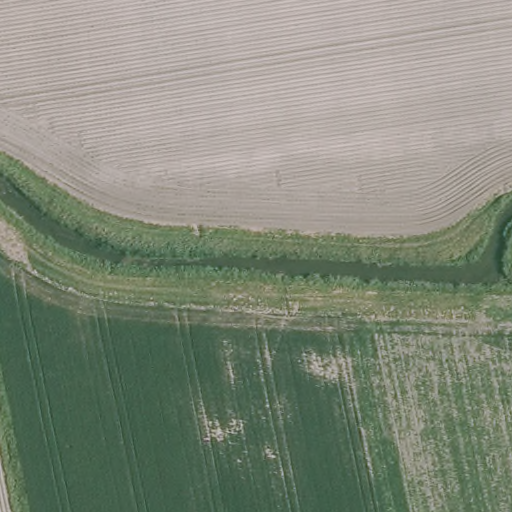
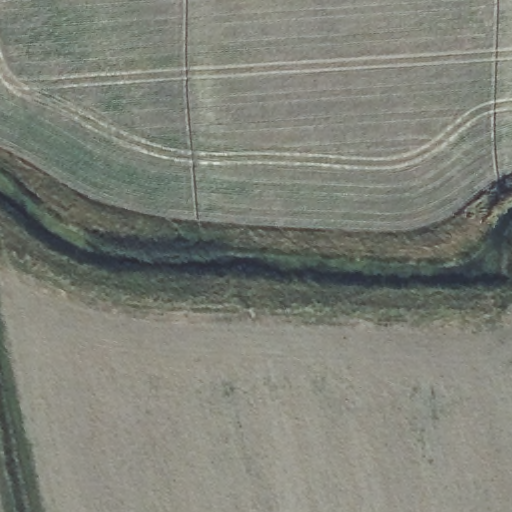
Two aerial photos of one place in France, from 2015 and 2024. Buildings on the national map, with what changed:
[]

